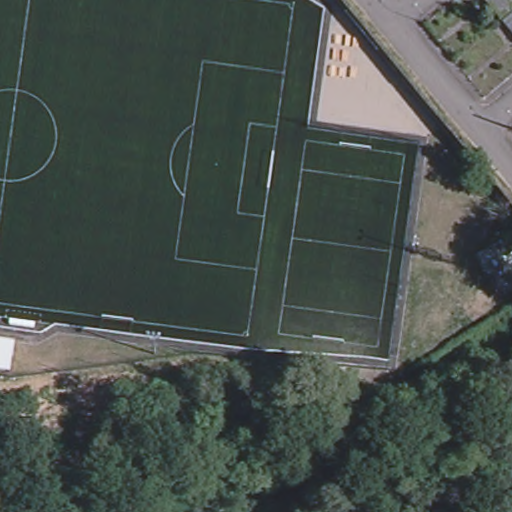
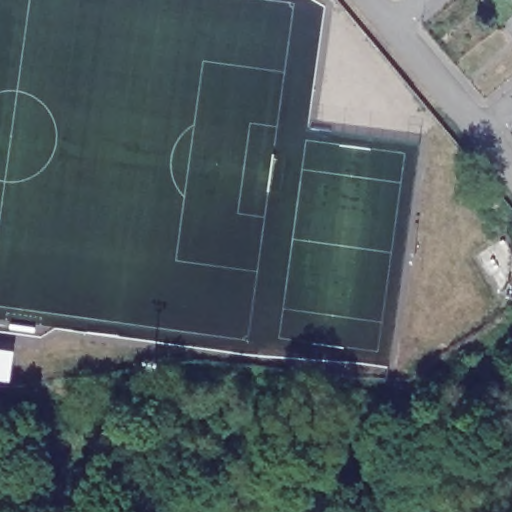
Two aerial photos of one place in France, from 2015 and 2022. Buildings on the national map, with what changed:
unchanged [(512,4),(512,14),(505,21),(487,0),(509,0),(512,4)]
unchanged [(14,348),(10,378),(0,376),(0,346),(14,348)]

